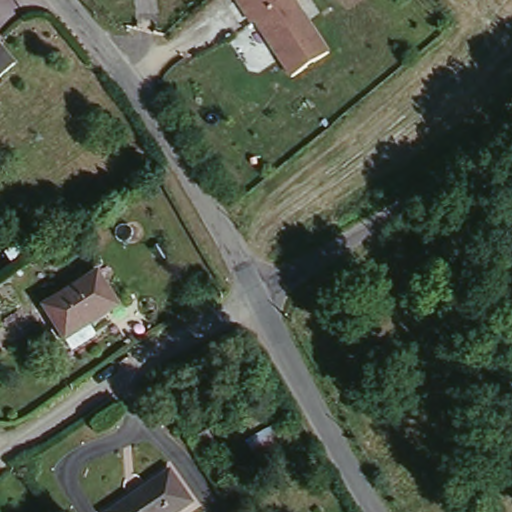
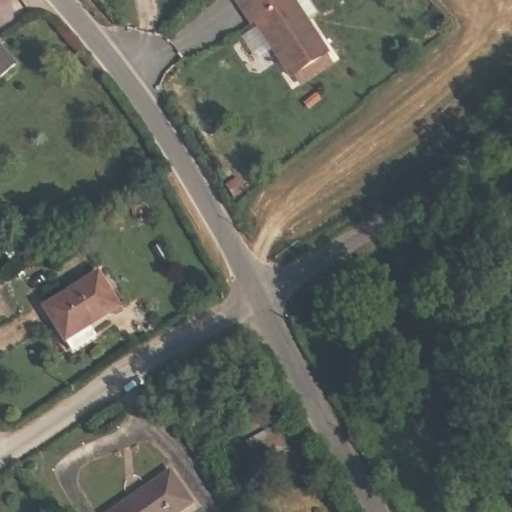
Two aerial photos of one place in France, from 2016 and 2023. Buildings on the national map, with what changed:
unchanged [(332,52),(291,80),(243,0),(300,0),(332,52)]
unchanged [(0,77),(0,57),(10,69),(0,77)]
unchanged [(123,300),(94,323),(101,334),(73,352),(44,302),(100,265),(123,300)]
unchanged [(274,439),(285,458),(257,472),(246,453),(274,439)]
unchanged [(187,501),(170,512),(106,512),(104,510),(167,470),(187,501)]

